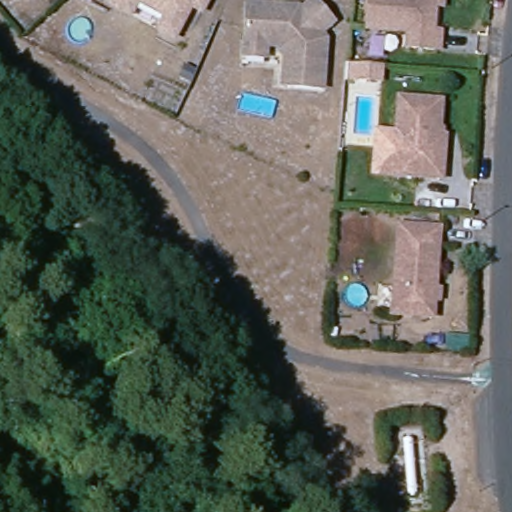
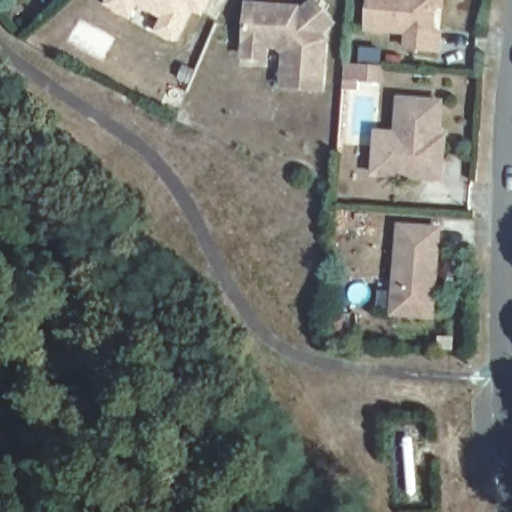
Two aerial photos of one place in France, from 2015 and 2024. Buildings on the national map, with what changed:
unchanged [(125,5),(117,0),(127,0),(125,5)]
unchanged [(152,23),(159,10),(144,0),(202,0),(196,9),(185,2),(164,32),(152,23)]
unchanged [(441,33),(441,50),(408,49),(408,31),(368,31),(370,0),(444,0),(443,6),(436,6),(433,34),(441,33)]
unchanged [(283,87),(284,54),(279,46),(245,45),(246,6),(284,8),(287,11),(295,12),(297,16),(314,1),(332,24),(320,34),(319,40),(324,41),(321,89),(283,87)]
unchanged [(382,73),(361,71),(361,55),(382,56),(382,73)]
unchanged [(387,171),(391,95),(433,97),(431,132),(437,133),(434,175),(387,171)]
unchanged [(385,310),(393,221),(431,225),(426,313),(385,310)]

